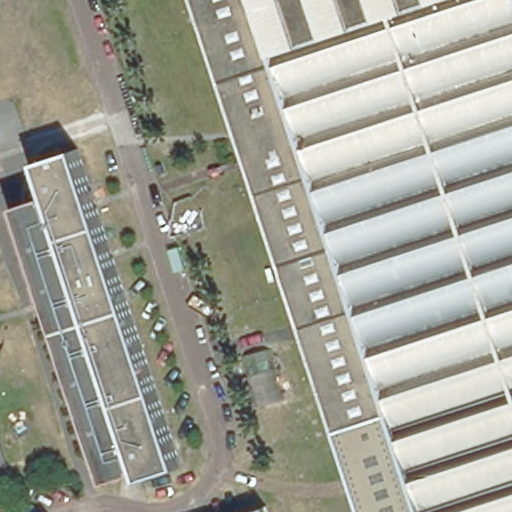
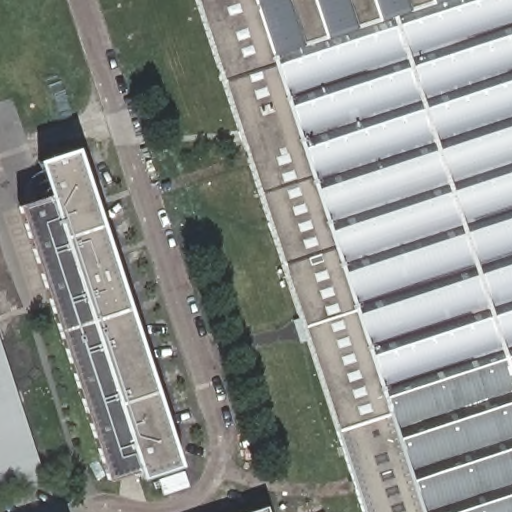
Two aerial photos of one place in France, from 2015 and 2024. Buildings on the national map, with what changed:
unchanged [(331,412),(197,0),(512,0),(512,353),(331,412)]
unchanged [(39,248),(24,201),(31,198),(32,197),(31,195),(31,187),(31,184),(32,181),(34,178),(36,175),(38,172),(40,170),(43,168),(40,157),(80,145),(182,462),(145,475),(142,467),(113,475),(105,450),(39,248)]
new [(0,340),(46,482),(0,497),(0,340)]
unchanged [(331,412),(512,353),(512,512),(363,512),(340,440),(331,412)]
demolished [(40,463),(19,469),(4,420),(25,415),(40,463)]
demolished [(0,490),(0,440),(15,486),(0,490)]
unchanged [(264,512),(236,512),(261,504),(264,512)]

